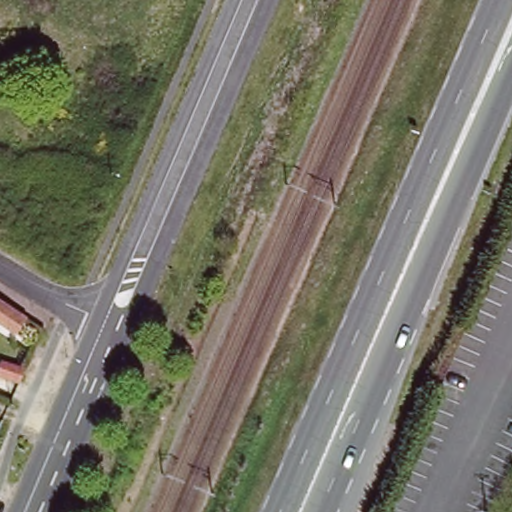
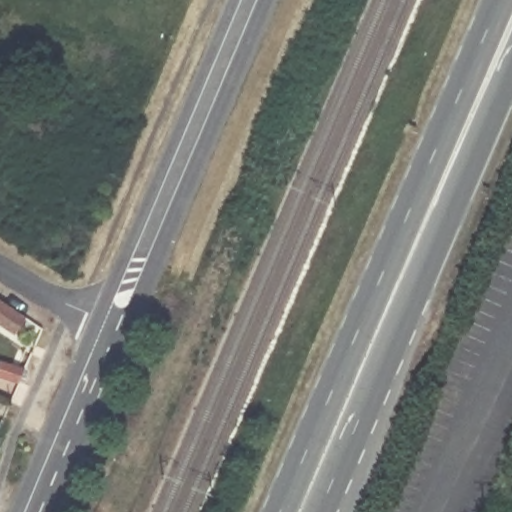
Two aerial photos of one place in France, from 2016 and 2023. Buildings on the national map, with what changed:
unchanged [(21,342),(0,328),(0,305),(32,327),(21,342)]

